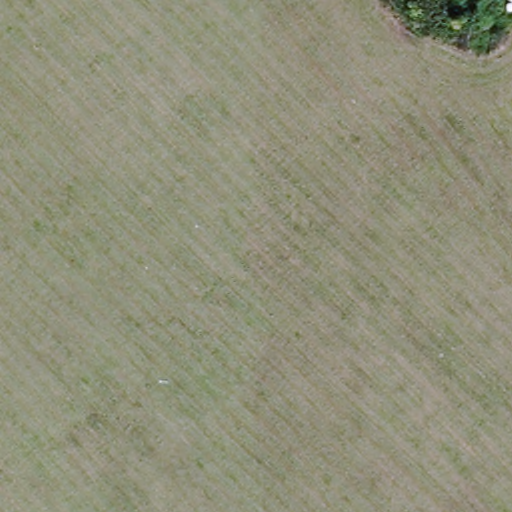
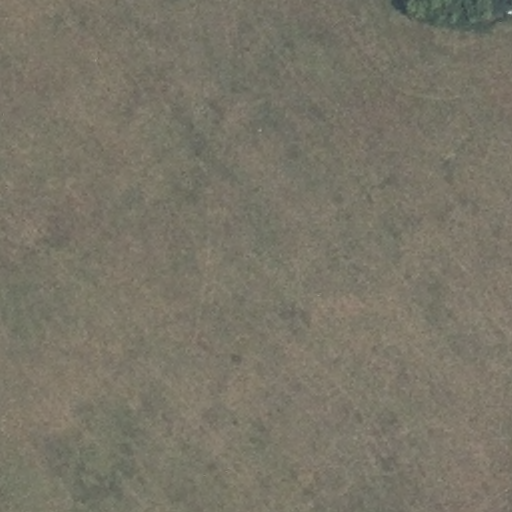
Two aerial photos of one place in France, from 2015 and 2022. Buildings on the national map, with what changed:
[]

